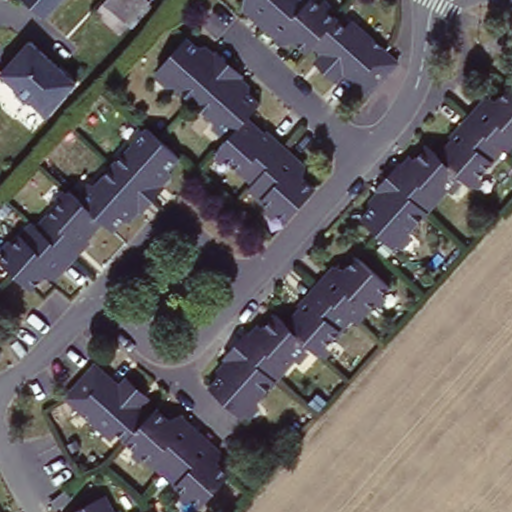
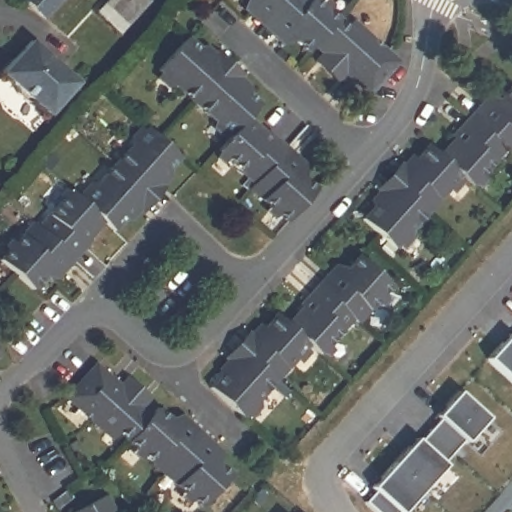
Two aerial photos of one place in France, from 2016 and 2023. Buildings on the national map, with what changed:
unchanged [(22,0),(56,0),(40,17),(22,0)]
unchanged [(123,0),(152,0),(134,18),(118,5),(123,0)]
unchanged [(344,73),(339,76),(320,59),(324,55),(309,41),(302,49),(295,44),(283,46),(244,14),(246,0),(321,0),(344,21),(348,16),(398,61),(377,84),(368,94),(357,85),(344,73)]
unchanged [(44,111),(29,98),(22,99),(12,89),(11,81),(0,71),(0,64),(26,36),(73,79),(44,111)]
unchanged [(196,50),(207,46),(244,78),(243,85),(257,102),(244,118),(265,138),(262,141),(277,156),(274,160),(294,177),(297,173),(315,190),(286,224),(246,189),(249,186),(213,153),(228,135),(156,71),(185,40),(196,50)]
unchanged [(512,91),(512,152),(512,153),(506,149),(473,185),(463,176),(398,249),(364,218),(369,212),(367,203),(406,159),(417,159),(429,146),(441,154),(452,141),(451,134),(487,96),(497,100),(508,86),(512,91)]
unchanged [(167,169),(165,185),(128,226),(121,220),(114,226),(101,215),(86,233),(86,246),(55,278),(43,275),(27,289),(0,262),(0,255),(31,220),(36,223),(69,185),(83,197),(144,128),(175,155),(167,169)]
unchanged [(391,294),(360,329),(353,323),(321,360),(309,350),(241,425),(209,396),(219,382),(216,372),(223,366),(219,360),(254,326),(263,328),(277,321),(289,332),(289,317),(334,265),(346,268),(358,264),(391,294)]
new [(491,357),(512,333),(512,375),(491,357)]
unchanged [(122,382),(144,401),(139,406),(149,415),(154,410),(166,419),(185,412),(221,449),(216,462),(229,474),(195,511),(109,434),(104,440),(63,402),(80,380),(93,366),(105,377),(117,388),(122,382)]
new [(404,512),(401,510),(399,512),(382,512),(369,500),(379,488),(374,485),(419,434),(424,438),(442,416),(439,413),(461,388),(490,415),(404,512)]
unchanged [(119,510),(114,512),(72,512),(110,493),(119,510)]

